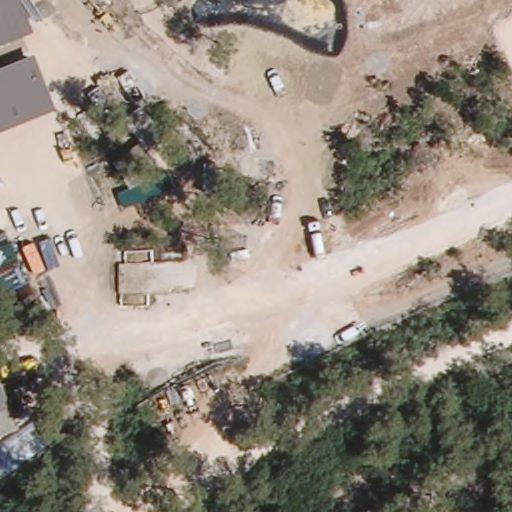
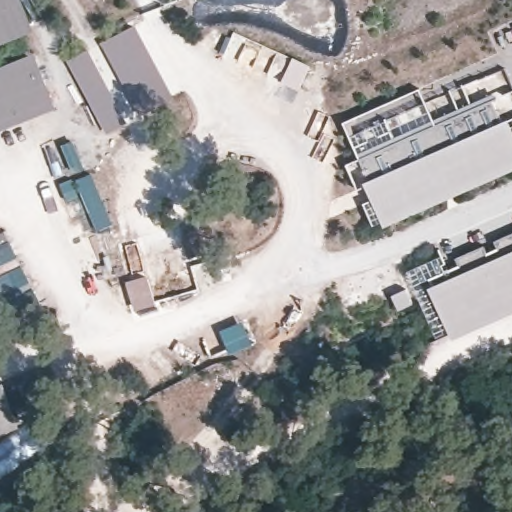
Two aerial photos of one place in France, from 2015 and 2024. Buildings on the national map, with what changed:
unchanged [(0,43),(0,0),(20,0),(33,29),(0,43)]
new [(142,115),(102,42),(134,24),(175,97),(142,115)]
new [(107,134),(66,61),(87,49),(128,122),(107,134)]
unchanged [(0,131),(0,65),(34,51),(58,107),(0,131)]
new [(512,146),(512,163),(373,224),(346,163),(358,158),(342,121),(419,87),(424,99),(464,83),(471,101),(512,86),(512,138),(509,139),(512,146)]
new [(112,225),(95,232),(80,195),(65,201),(59,185),(90,172),(112,225)]
new [(428,278),(458,265),(456,258),(512,233),(512,315),(451,339),(428,286),(432,285),(428,278)]
new [(10,238),(43,313),(21,323),(10,299),(0,297),(0,243),(10,238)]
unchanged [(3,389),(17,430),(0,437),(0,390),(3,389)]

